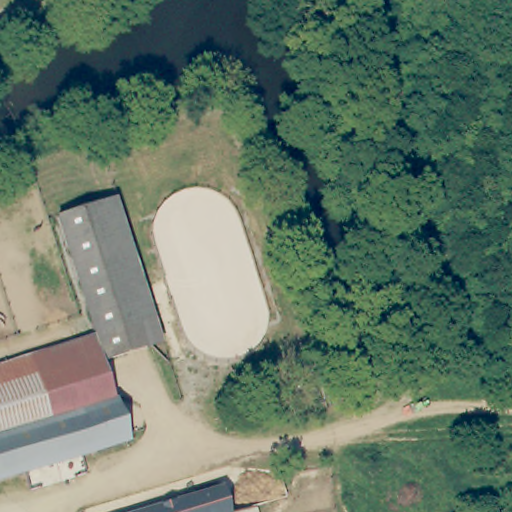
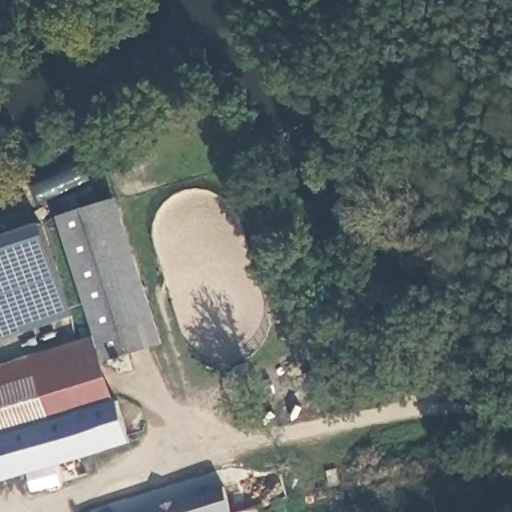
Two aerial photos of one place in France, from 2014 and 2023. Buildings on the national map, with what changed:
unchanged [(106,334),(68,215),(114,200),(163,343),(113,359),(106,334)]
new [(72,315),(0,340),(0,236),(41,223),(72,315)]
unchanged [(0,439),(0,368),(106,334),(113,359),(125,398),(0,439)]
unchanged [(116,446),(0,483),(0,439),(125,398),(128,396),(142,438),(116,446)]
unchanged [(256,509),(244,512),(138,512),(247,479),(256,509)]

